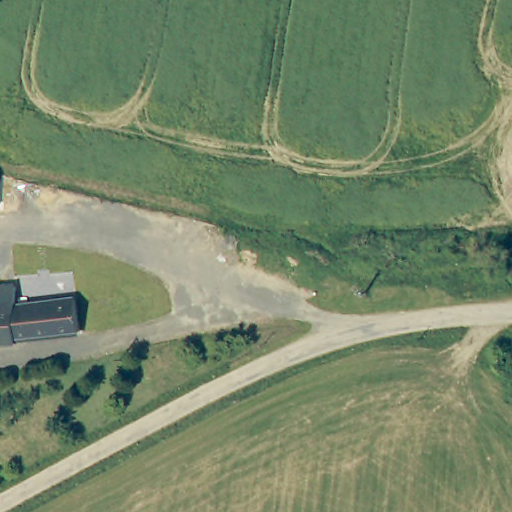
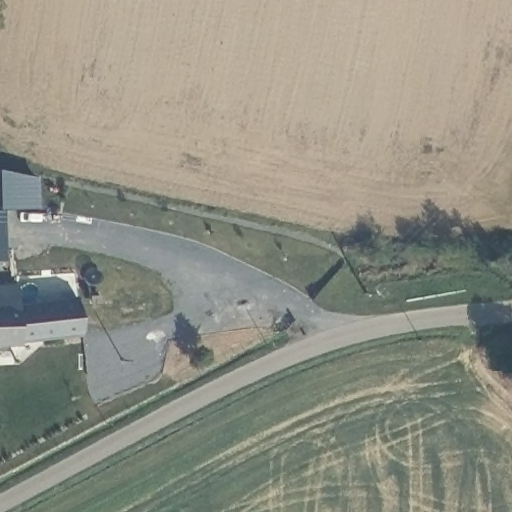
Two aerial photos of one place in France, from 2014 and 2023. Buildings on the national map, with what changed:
new [(36,210),(0,211),(0,170),(35,178),(36,210)]
unchanged [(19,305),(79,297),(80,308),(80,309),(84,330),(79,330),(20,337),(20,343),(0,345),(0,286),(17,285),(19,305)]

